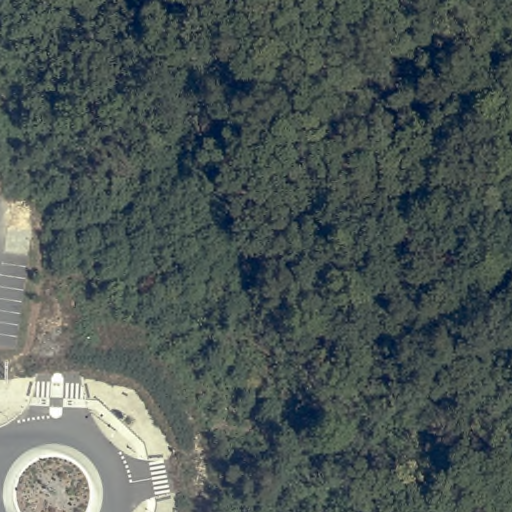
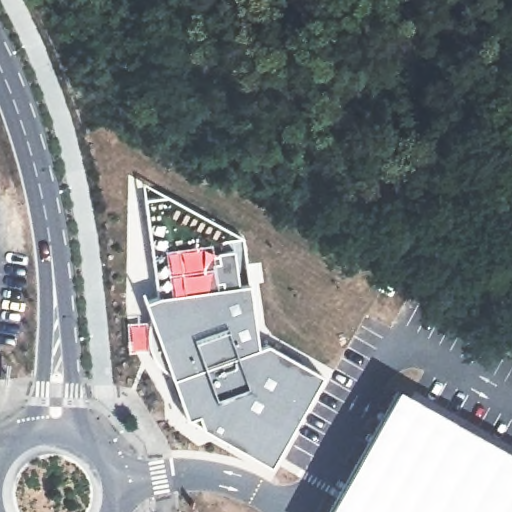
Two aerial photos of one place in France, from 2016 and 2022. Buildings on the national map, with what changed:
new [(168,195),(243,237),(250,283),(258,347),(268,343),(323,376),(272,466),(188,420),(172,378),(155,358),(150,346),(150,318),(145,302),(157,296),(144,199),(168,195)]
new [(512,512),(324,512),(397,386),(512,451),(512,512)]

